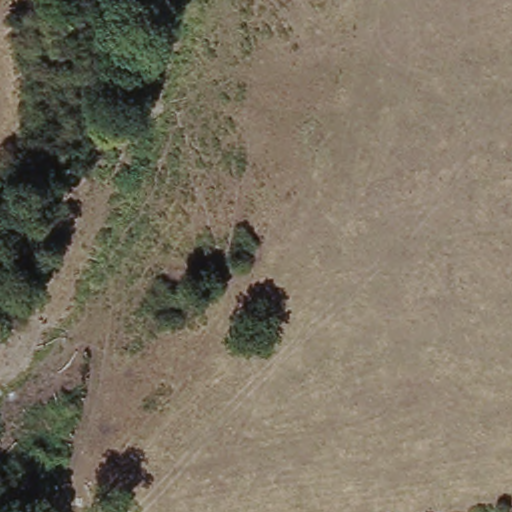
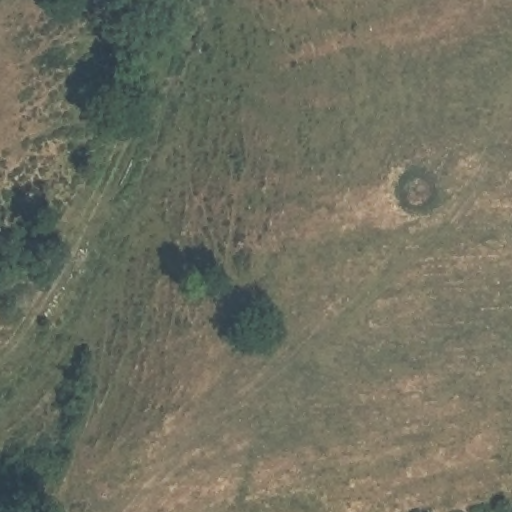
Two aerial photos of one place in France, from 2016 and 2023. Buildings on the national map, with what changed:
[]

